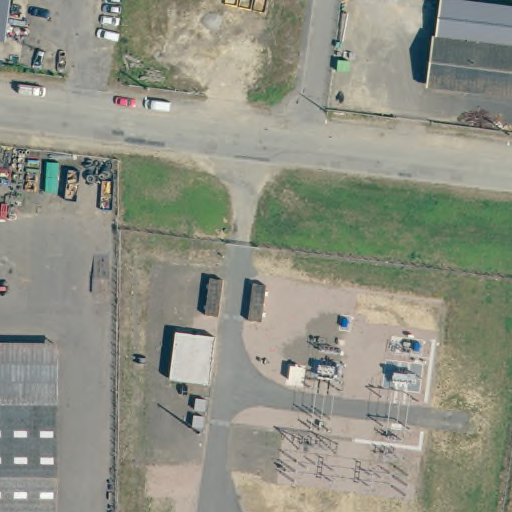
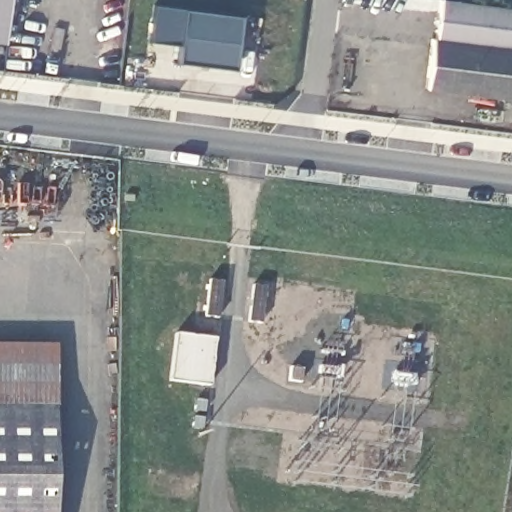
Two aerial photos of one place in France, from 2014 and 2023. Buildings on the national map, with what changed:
unchanged [(2,42),(0,42),(0,0),(9,0),(2,42)]
unchanged [(431,39),(435,39),(438,0),(443,0),(512,8),(512,97),(440,89),(425,87),(425,74),(431,39)]
new [(178,46),(150,42),(155,5),(183,9),(238,17),(232,67),(176,61),(178,46)]
unchanged [(170,382),(175,333),(211,336),(205,384),(170,382)]
unchanged [(56,343),(55,512),(0,512),(0,343),(56,343)]

